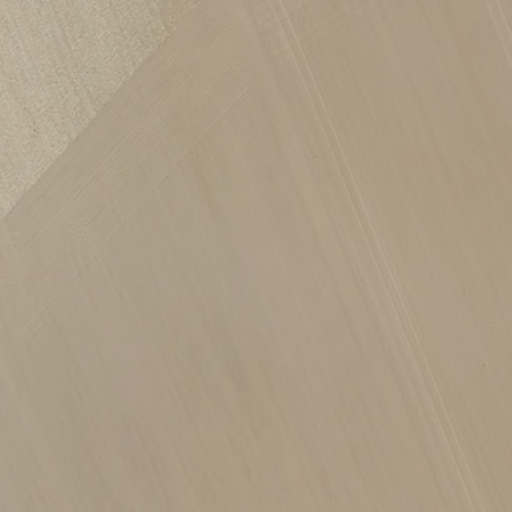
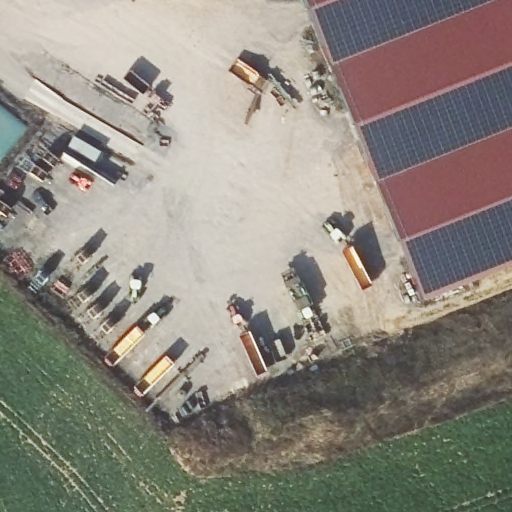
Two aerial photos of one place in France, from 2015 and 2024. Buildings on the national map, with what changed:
new [(330,68),(302,0),(501,0),(330,68)]
new [(512,131),(376,185),(330,68),(501,0),(512,0),(512,131)]
new [(512,266),(422,302),(376,185),(512,131),(512,266)]

